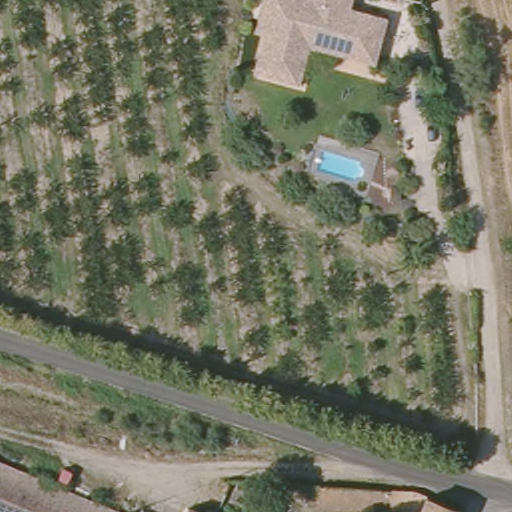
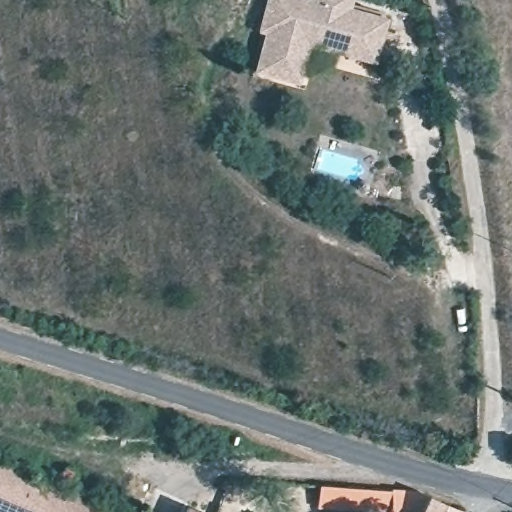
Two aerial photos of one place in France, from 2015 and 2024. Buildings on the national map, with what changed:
unchanged [(315,42),(305,76),(255,66),(266,32),(255,29),(263,0),(350,0),(350,3),(391,12),(379,59),(315,42)]
unchanged [(110,512),(0,512),(0,463),(110,512)]
unchanged [(464,512),(383,512),(321,504),(324,479),(410,488),(466,508),(464,512)]
unchanged [(193,512),(191,512),(192,511),(193,512)]

